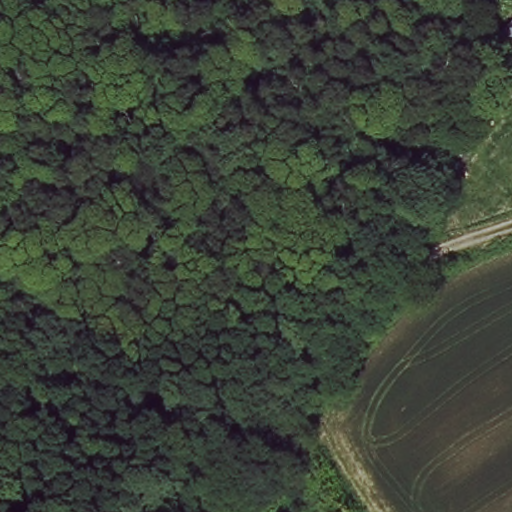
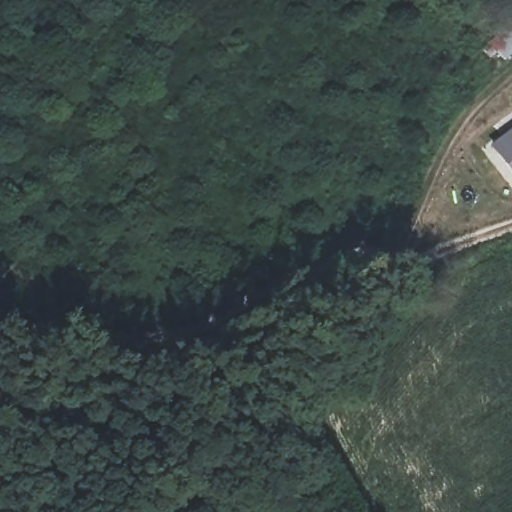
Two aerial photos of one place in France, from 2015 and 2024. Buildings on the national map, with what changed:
unchanged [(505,60),(490,41),(512,21),(512,54),(505,60)]
new [(490,145),(512,128),(512,173),(490,145)]

